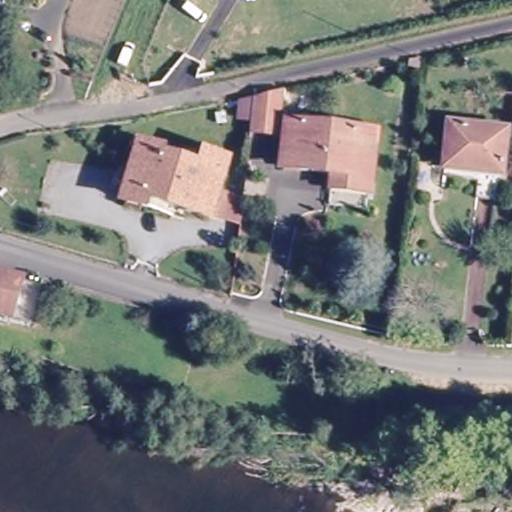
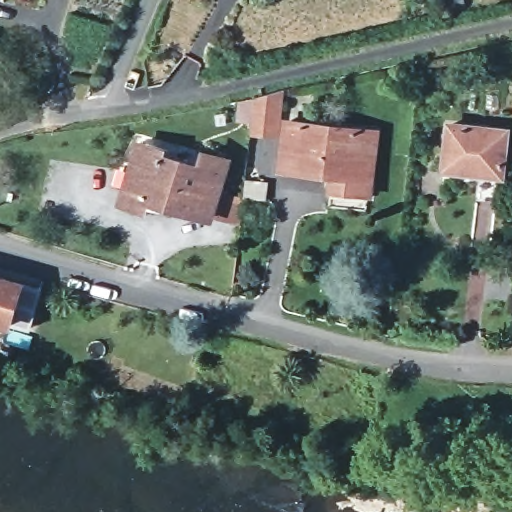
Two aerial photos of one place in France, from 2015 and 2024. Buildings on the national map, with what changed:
unchanged [(283,90),(278,135),(250,132),(254,98),(283,90)]
unchanged [(333,174),(283,168),(288,122),(295,122),(295,118),(306,119),(305,124),(376,132),(369,194),(346,191),(331,189),(333,174)]
unchanged [(498,184),(496,201),(476,199),(480,173),(453,170),(445,169),(445,159),(450,125),(506,131),(501,175),(500,184),(498,184)]
unchanged [(232,206),(230,222),(201,213),(200,217),(147,202),(145,211),(112,201),(130,143),(152,149),(150,156),(191,168),(195,152),(217,159),(206,198),(232,205),(232,206)]
unchanged [(256,182),(255,198),(233,196),(234,189),(235,180),(256,182)]
unchanged [(0,320),(0,277),(41,288),(30,328),(0,320)]

